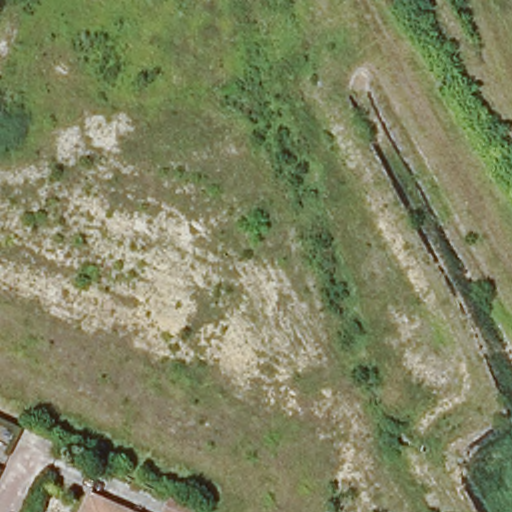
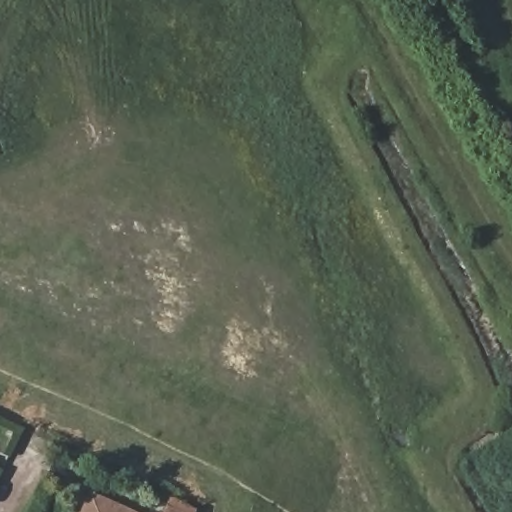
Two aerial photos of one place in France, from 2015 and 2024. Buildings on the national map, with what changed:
unchanged [(2,451),(0,456),(0,450),(2,451)]
unchanged [(82,512),(91,492),(130,512),(82,512)]
unchanged [(207,510),(207,512),(171,512),(177,496),(207,510)]

